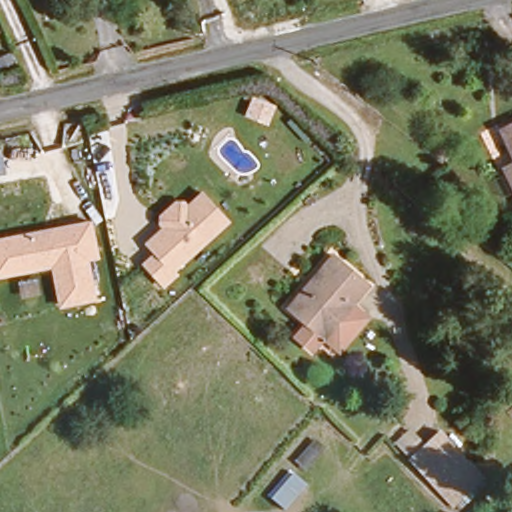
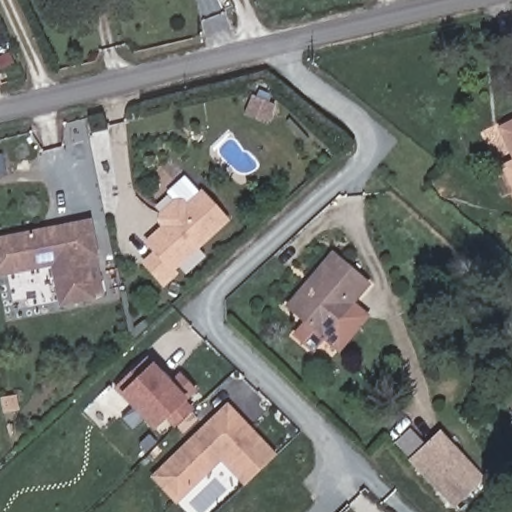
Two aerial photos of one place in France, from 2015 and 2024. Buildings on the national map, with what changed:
unchanged [(512,124),(512,146),(504,127),(512,124)]
unchanged [(512,164),(512,180),(505,166),(512,164)]
unchanged [(230,222),(177,270),(180,274),(165,289),(140,263),(151,252),(143,243),(160,227),(158,215),(175,199),(183,198),(188,202),(202,189),(230,222)]
unchanged [(96,250),(84,252),(94,298),(62,304),(53,264),(0,276),(0,239),(89,221),(96,250)]
unchanged [(369,285),(358,298),(374,313),(354,334),(338,322),(324,334),(295,309),(289,304),(311,276),(331,252),(369,285)]
new [(146,360),(171,387),(182,376),(196,389),(183,403),(192,412),(177,426),(167,417),(155,429),(114,390),(146,360)]
new [(226,405),(275,456),(245,485),(221,459),(188,490),(176,502),(152,477),(164,464),(226,405)]
unchanged [(437,430),(448,441),(457,449),(429,482),(423,476),(407,461),(437,430)]
unchanged [(429,482),(457,449),(486,477),(455,507),(429,482)]

